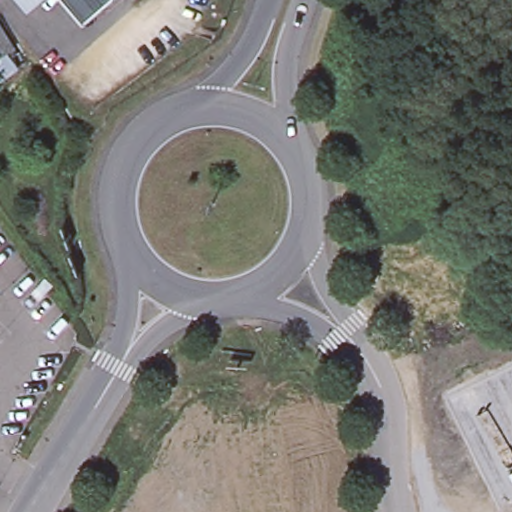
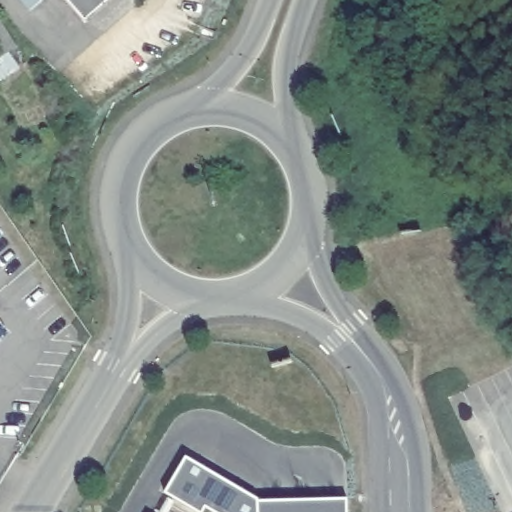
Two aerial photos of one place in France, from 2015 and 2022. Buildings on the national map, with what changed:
unchanged [(86,25),(65,0),(115,0),(86,25)]
unchanged [(19,47),(11,52),(21,69),(3,84),(0,81),(0,17),(19,47)]
new [(258,500),(347,499),(347,512),(217,512),(206,505),(202,512),(165,493),(186,457),(258,500)]

